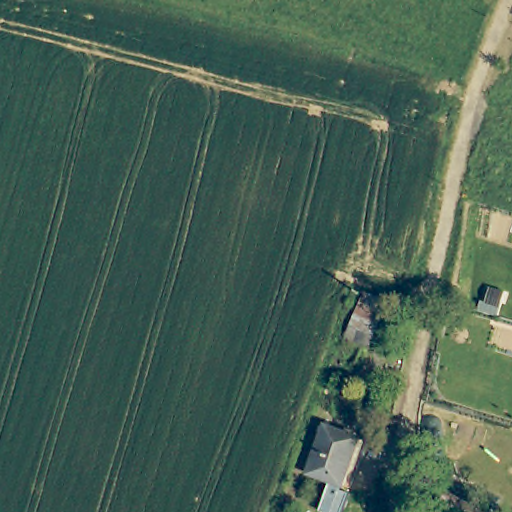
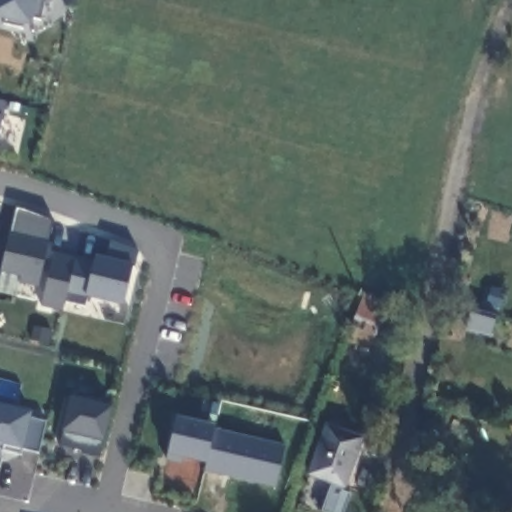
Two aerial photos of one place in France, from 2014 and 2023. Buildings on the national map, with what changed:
new [(23,29),(4,25),(4,18),(0,17),(0,0),(46,0),(42,20),(31,18),(30,25),(23,23),(23,29)]
new [(0,100),(7,102),(0,131),(0,100)]
new [(86,297),(83,307),(63,302),(62,310),(41,305),(47,272),(41,270),(37,287),(20,283),(22,276),(1,271),(10,233),(17,208),(52,220),(46,251),(91,261),(93,253),(107,256),(110,239),(139,248),(133,267),(123,307),(86,297)]
unchanged [(389,299),(371,347),(346,338),(365,291),(389,299)]
new [(83,455),(83,450),(59,446),(62,429),(67,394),(110,404),(103,441),(100,458),(83,455)]
new [(22,447),(0,443),(0,404),(32,412),(31,418),(46,421),(38,451),(22,447)]
new [(274,487),(202,470),(204,463),(182,458),(180,462),(164,458),(166,452),(174,417),(214,427),(284,444),(274,487)]
unchanged [(362,438),(344,487),(309,473),(327,425),(362,438)]

